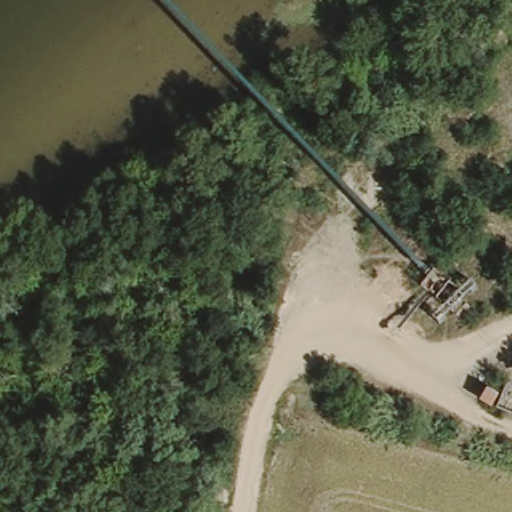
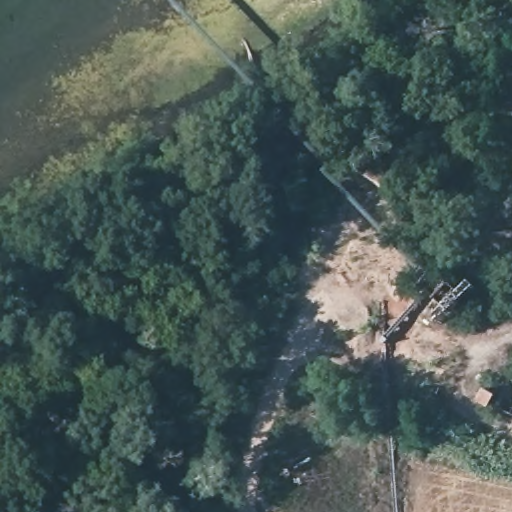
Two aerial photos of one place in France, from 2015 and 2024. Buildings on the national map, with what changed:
unchanged [(472,321),(430,288),(440,276),(453,288),(470,268),(485,282),(469,301),(481,311),(472,321)]
unchanged [(410,293),(392,305),(383,287),(402,280),(410,293)]

